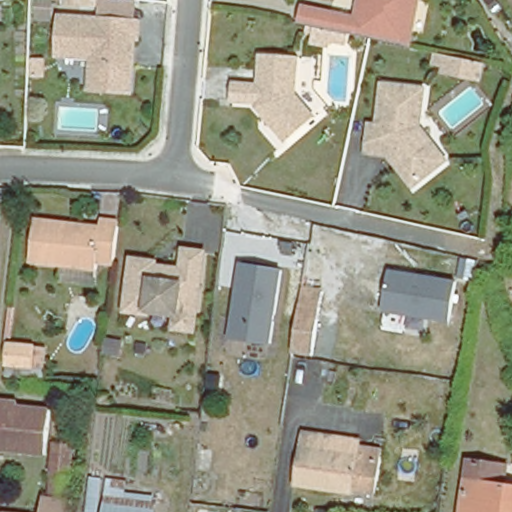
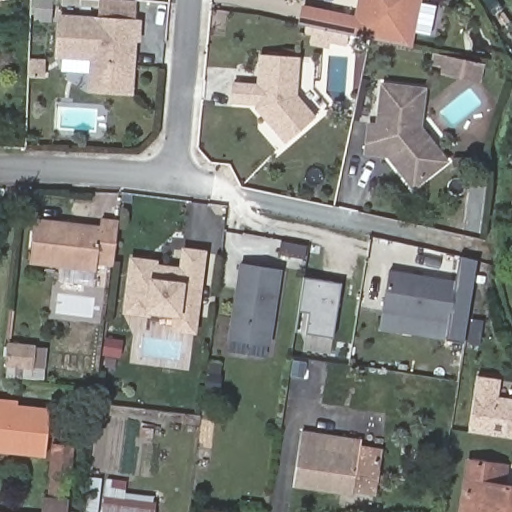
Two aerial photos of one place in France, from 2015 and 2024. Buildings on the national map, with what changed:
unchanged [(54,24),(33,23),(34,0),(54,0),(54,24)]
unchanged [(355,15),(358,0),(422,0),(414,49),(349,38),(347,52),(311,47),(314,28),(299,26),(301,7),(355,15)]
unchanged [(91,60),(56,57),(59,19),(136,25),(136,42),(133,41),(132,48),(131,57),(129,96),(98,94),(89,93),(91,60)]
unchanged [(230,101),(233,83),(258,86),(260,54),(298,58),(294,97),(312,117),(283,142),(264,119),(250,103),(230,101)]
unchanged [(476,81),(441,73),(445,57),(456,59),(479,64),(476,81)]
unchanged [(367,154),(371,125),(379,125),(384,85),(427,90),(422,129),(435,146),(448,162),(414,187),(400,169),(390,156),(367,154)]
unchanged [(114,258),(96,257),(96,265),(31,258),(35,215),(101,222),(101,217),(119,219),(114,258)]
unchanged [(175,333),(177,318),(150,315),(149,319),(126,316),(132,265),(156,267),(155,272),(182,275),(185,255),(204,257),(197,321),(195,336),(175,333)]
unchanged [(269,345),(227,339),(240,262),(282,267),(269,345)]
unchanged [(456,281),(450,323),(385,313),(389,270),(456,281)]
new [(342,284),(334,335),(307,332),(310,311),(300,310),(306,278),(342,284)]
demolished [(313,356),(292,353),(302,287),(322,290),(313,356)]
unchanged [(30,365),(4,362),(5,342),(41,345),(41,355),(41,365),(30,365)]
new [(512,398),(512,438),(470,432),(479,377),(502,380),(499,396),(512,398)]
unchanged [(0,450),(0,400),(17,402),(16,407),(50,410),(46,455),(0,450)]
unchanged [(361,440),(360,447),(383,450),(377,493),(353,490),(353,496),(294,487),(302,432),(361,440)]
unchanged [(52,442),(73,445),(68,497),(46,495),(52,442)]
unchanged [(506,470),(504,490),(512,491),(512,512),(461,512),(468,465),(506,470)]
unchanged [(127,477),(125,492),(155,496),(154,512),(85,512),(91,473),(127,477)]
unchanged [(45,512),(46,498),(46,495),(68,497),(66,512),(45,512)]

